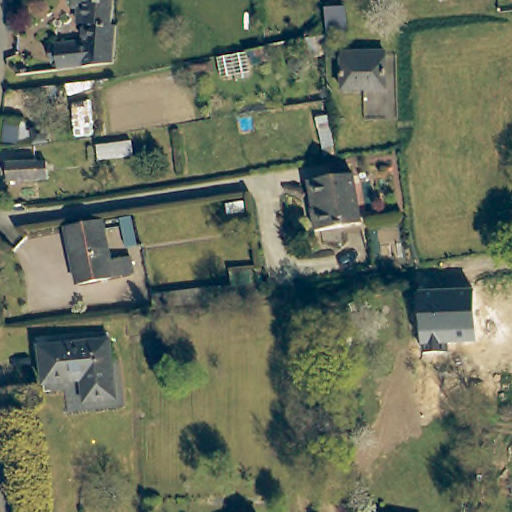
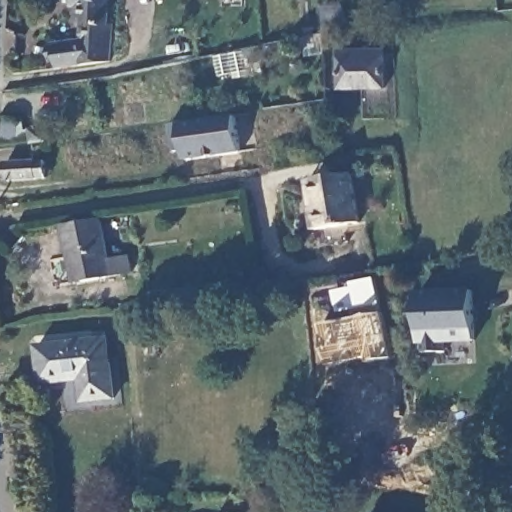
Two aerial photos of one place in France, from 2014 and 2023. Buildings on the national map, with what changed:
unchanged [(69,67),(62,68),(54,69),(51,44),(83,39),(82,23),(68,22),(69,5),(76,5),(76,0),(106,0),(104,24),(107,24),(108,39),(108,46),(104,62),(69,67)]
unchanged [(296,25),(295,0),(315,0),(316,25),(317,36),(296,37),(296,25)]
unchanged [(320,6),(339,6),(340,32),(320,32),(320,6)]
unchanged [(384,51),(386,88),(342,90),(341,53),(384,51)]
new [(249,111),(255,148),(237,151),(240,171),(219,175),(215,154),(183,159),(182,149),(172,151),(168,124),(249,111)]
unchanged [(35,156),(36,174),(6,176),(4,159),(35,156)]
unchanged [(357,225),(313,233),(309,211),(303,184),(309,183),(347,175),(357,225)]
unchanged [(101,221),(109,261),(129,258),(131,273),(75,283),(64,228),(101,221)]
unchanged [(176,304),(174,292),(261,283),(263,293),(176,304)]
unchanged [(476,341),(449,342),(449,356),(423,356),(421,293),(474,291),(476,341)]
unchanged [(43,383),(42,383),(38,346),(107,339),(117,400),(84,402),(80,380),(70,381),(43,383)]

